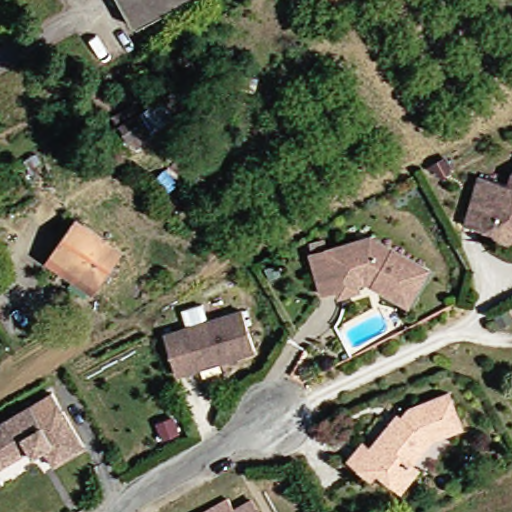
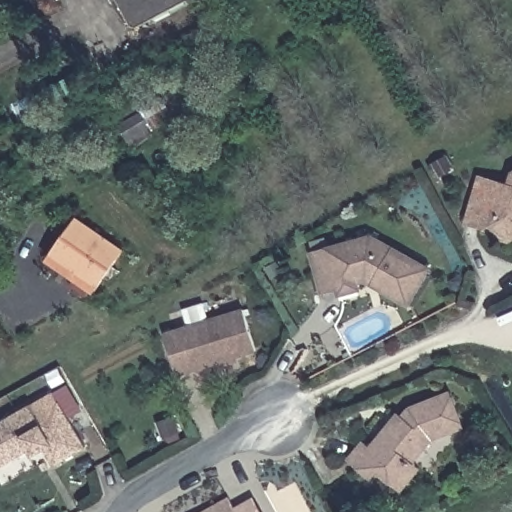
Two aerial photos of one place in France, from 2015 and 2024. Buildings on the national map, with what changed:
unchanged [(143,24),(130,0),(198,0),(149,25),(143,24)]
unchanged [(150,126),(128,139),(120,125),(142,113),(150,126)]
unchanged [(499,232),(469,223),(483,174),(512,183),(512,240),(502,237),(499,232)]
unchanged [(58,259),(62,253),(85,219),(132,251),(109,285),(105,291),(58,259)]
unchanged [(355,294),(357,299),(336,305),(334,299),(317,304),(306,263),(366,245),(425,278),(405,315),(378,300),(362,292),(355,294)]
unchanged [(260,346),(183,369),(170,329),(248,305),(260,346)]
unchanged [(57,392),(90,448),(59,465),(50,449),(39,454),(36,449),(0,470),(0,426),(57,392)]
unchanged [(407,491),(396,482),(383,471),(377,478),(354,459),(368,442),(375,448),(394,424),(402,414),(406,417),(414,408),(454,393),(468,428),(438,439),(418,464),(424,469),(407,491)]
unchanged [(228,499),(234,511),(251,501),(258,512),(206,512),(228,499)]

